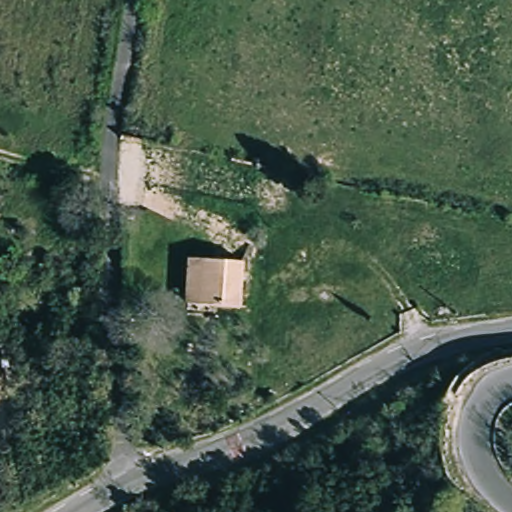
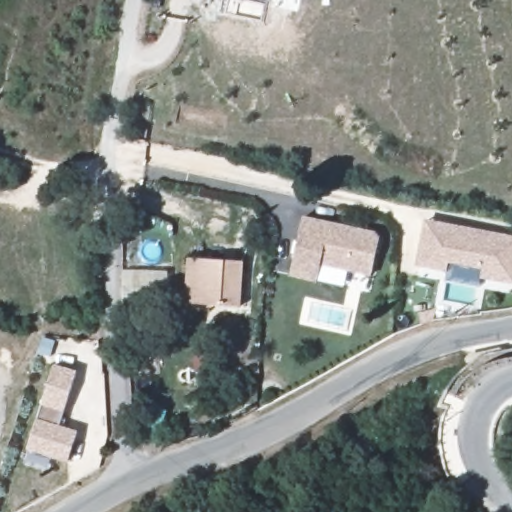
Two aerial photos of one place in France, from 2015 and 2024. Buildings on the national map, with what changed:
new [(298,246),(302,223),(376,235),(379,239),(373,274),(322,266),(319,283),(293,278),(297,253),(298,246)]
new [(453,231),(491,238),(512,242),(512,287),(482,282),(484,273),(450,266),(448,275),(419,269),(426,235),(451,240),(453,231)]
unchanged [(192,255),(205,255),(244,257),(243,303),(215,302),(214,308),(203,309),(189,306),(192,255)]
new [(42,406),(55,366),(77,373),(63,413),(58,427),(78,433),(67,465),(27,452),(37,420),(42,406)]
new [(147,408),(164,412),(158,442),(141,439),(147,408)]

